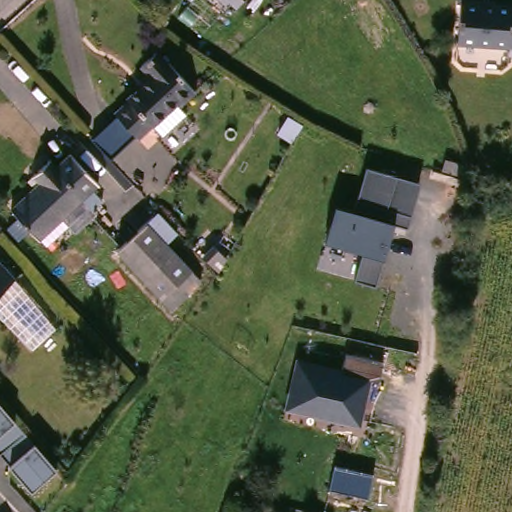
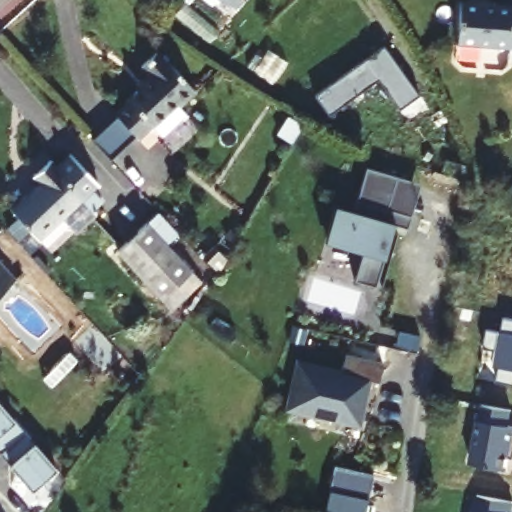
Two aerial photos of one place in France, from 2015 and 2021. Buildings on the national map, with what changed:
unchanged [(226,0),(247,0),(243,6),(235,0),(232,4),(226,0)]
unchanged [(512,3),(512,43),(463,42),(464,0),(487,0),(487,2),(512,3)]
new [(386,45),(420,96),(398,110),(378,80),(328,113),(315,92),(386,45)]
unchanged [(165,133),(155,122),(141,135),(119,110),(132,99),(129,96),(156,72),(147,63),(160,51),(170,61),(172,59),(196,85),(180,100),(190,111),(165,133)]
unchanged [(59,155),(66,163),(76,155),(102,184),(98,188),(105,196),(97,206),(101,210),(92,218),(79,229),(68,216),(45,238),(17,208),(47,181),(39,174),(59,155)]
unchanged [(406,227),(393,223),(375,282),(352,276),(360,252),(322,242),(333,203),(350,208),(365,164),(418,181),(406,227)]
unchanged [(162,211),(182,235),(171,247),(202,282),(172,308),(119,249),(162,211)]
unchanged [(221,264),(204,249),(216,238),(231,252),(221,264)]
unchanged [(21,277),(0,295),(0,255),(21,277)]
new [(502,332),(504,317),(512,319),(512,385),(496,382),(499,368),(495,367),(497,351),(483,348),(487,329),(502,332)]
unchanged [(342,367),(346,354),(382,361),(376,381),(367,379),(358,422),(285,406),(296,357),(342,367)]
new [(506,470),(470,463),(481,404),(511,410),(507,426),(512,427),(512,458),(508,457),(506,470)]
unchanged [(20,427),(54,464),(30,486),(0,454),(0,406),(20,427)]
unchanged [(372,474),(365,498),(326,488),(333,464),(372,474)]
new [(512,502),(510,512),(472,512),(476,495),(512,502)]

